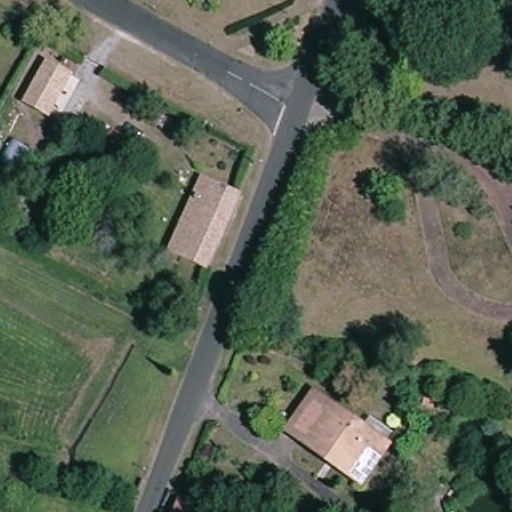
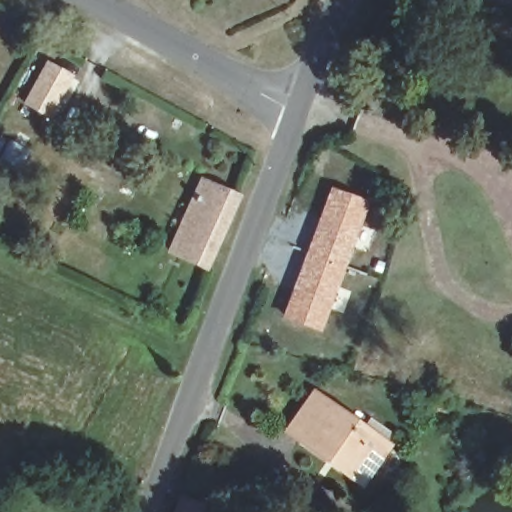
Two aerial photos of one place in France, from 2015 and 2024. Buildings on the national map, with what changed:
unchanged [(221,11),(206,4),(208,0),(221,0),(225,2),(221,11)]
unchanged [(80,90),(58,130),(34,116),(56,76),(80,90)]
unchanged [(234,197),(210,260),(177,248),(205,184),(234,197)]
new [(281,317),(330,185),(370,201),(321,331),(281,317)]
unchanged [(369,479),(337,459),(333,466),(306,449),(310,442),(295,433),(314,399),(389,445),(369,479)]

